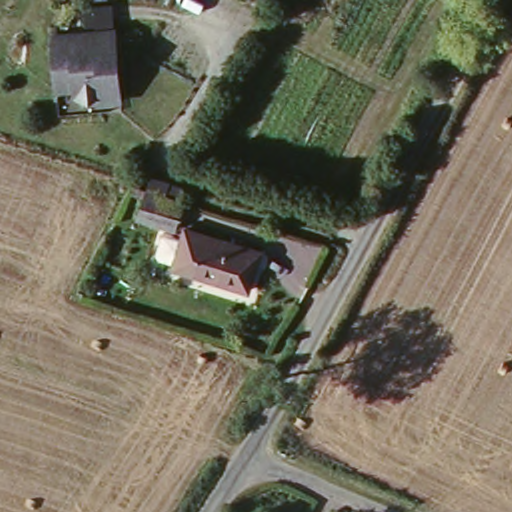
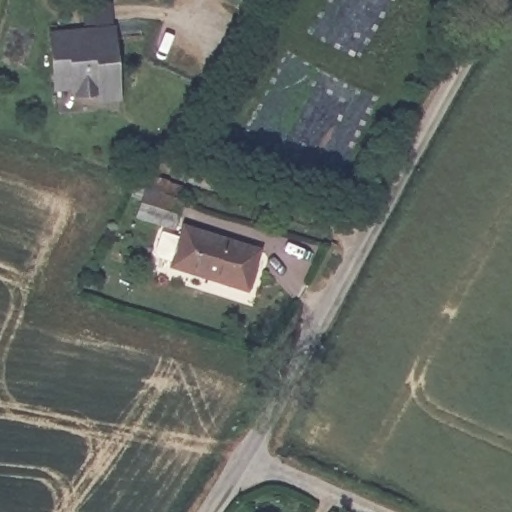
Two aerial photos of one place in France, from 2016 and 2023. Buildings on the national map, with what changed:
unchanged [(89,30),(85,6),(110,6),(114,28),(119,103),(79,105),(77,91),(56,93),(49,33),(89,30)]
unchanged [(141,191),(178,200),(170,227),(134,216),(141,191)]
unchanged [(181,224),(259,247),(247,284),(168,261),(181,224)]

